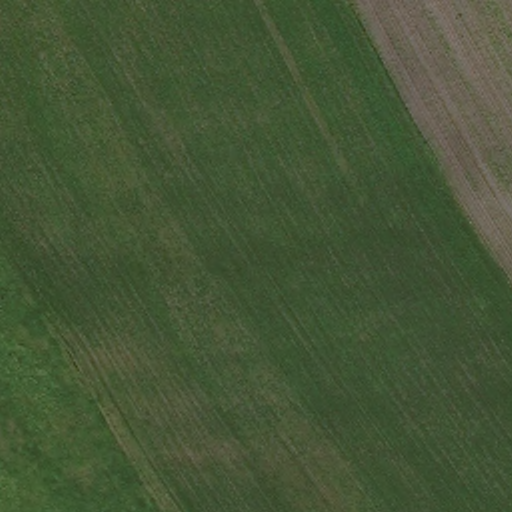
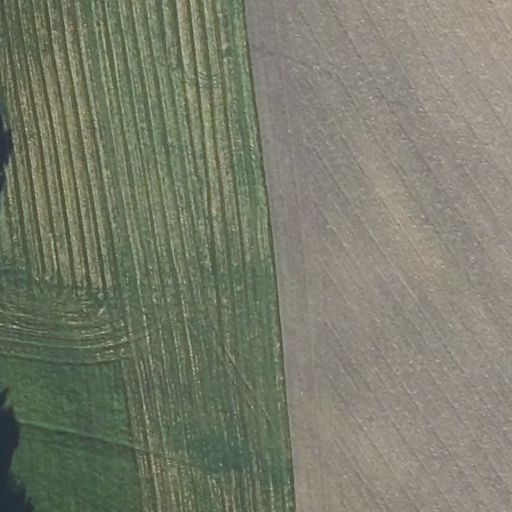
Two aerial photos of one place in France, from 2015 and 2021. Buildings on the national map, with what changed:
[]

